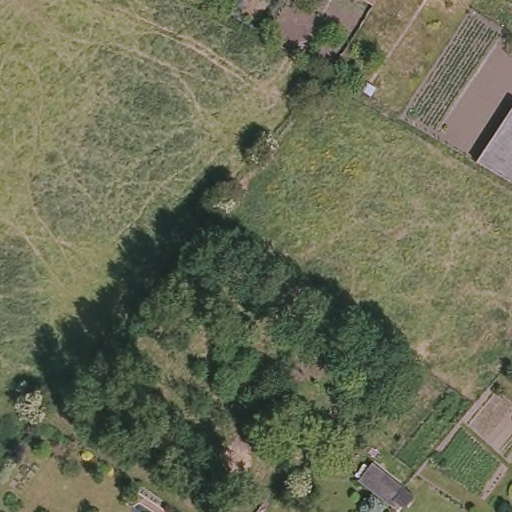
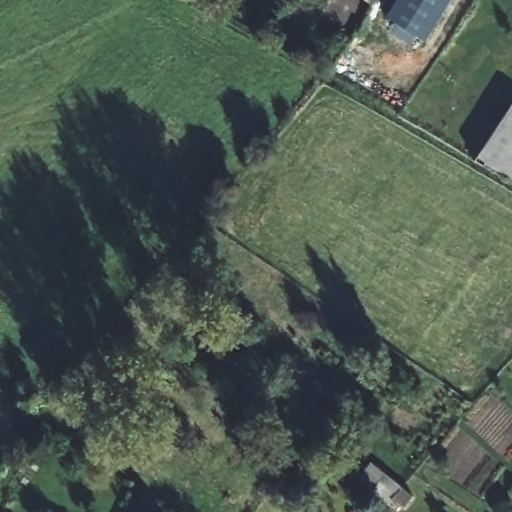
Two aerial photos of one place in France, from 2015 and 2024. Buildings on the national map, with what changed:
new [(425,41),(390,19),(401,0),(452,0),(425,41)]
unchanged [(475,159),(512,102),(512,169),(505,179),(475,159)]
unchanged [(373,462),(415,495),(402,512),(399,512),(357,479),(373,462)]

